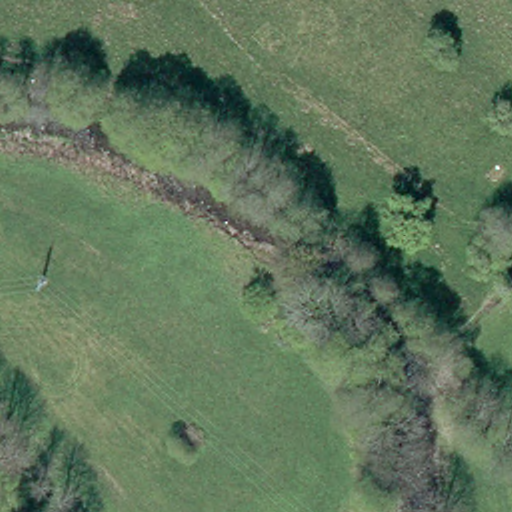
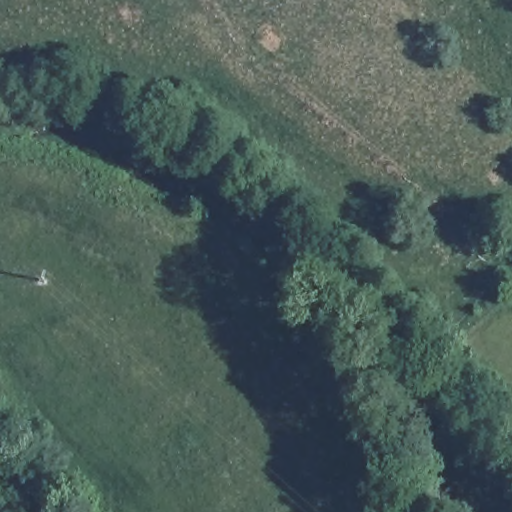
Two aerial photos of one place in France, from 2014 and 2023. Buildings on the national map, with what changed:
[]

